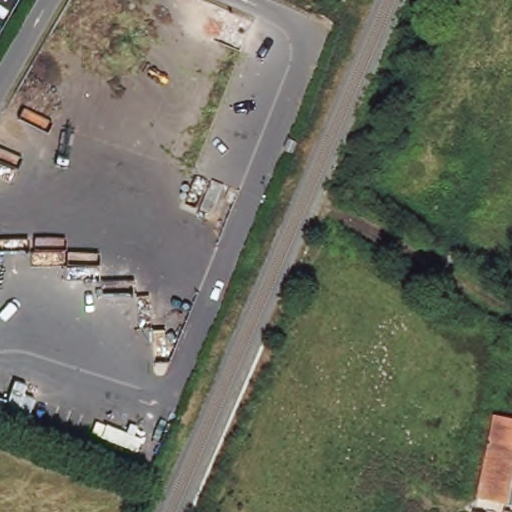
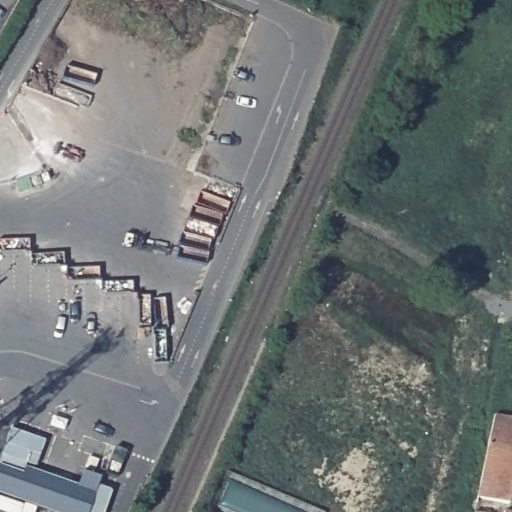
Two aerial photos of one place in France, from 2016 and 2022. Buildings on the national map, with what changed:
unchanged [(512,419),(512,478),(506,505),(476,499),(491,415),(512,419)]
new [(0,458),(10,428),(45,441),(34,470),(77,486),(82,471),(100,476),(97,486),(111,491),(105,512),(52,512),(0,494),(0,458)]

